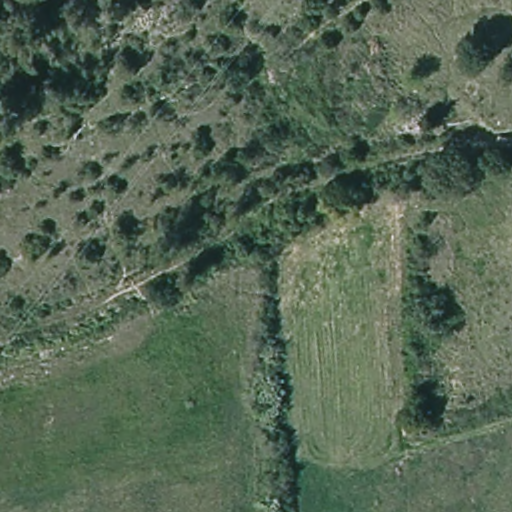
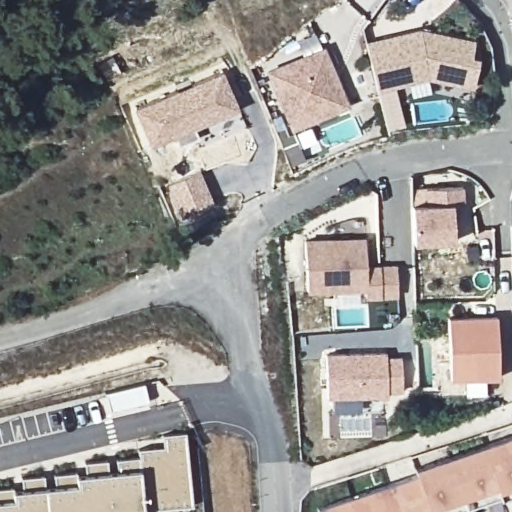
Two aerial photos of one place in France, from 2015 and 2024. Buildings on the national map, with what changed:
new [(385,129),(380,103),(378,92),(366,43),(421,29),(476,41),(472,58),(480,59),(473,90),(427,80),(394,88),(396,99),(403,127),(385,129)]
new [(325,46),(350,105),(291,131),(266,72),(325,46)]
new [(151,147),(135,111),(223,72),(240,109),(195,128),(199,138),(179,147),(175,137),(151,147)]
new [(282,147),(294,143),(301,158),(288,163),(282,147)]
new [(200,171),(214,203),(181,218),(167,186),(200,171)]
new [(428,208),(428,192),(465,191),(465,208),(454,208),(455,243),(414,244),(413,208),(428,208)]
new [(368,242),(368,270),(398,269),(399,298),(367,298),(367,290),(309,292),(307,243),(368,242)]
new [(498,317),(499,379),(451,380),(448,318),(498,317)]
new [(388,353),(388,358),(403,358),(403,391),(388,392),(389,397),(328,398),(326,355),(388,353)]
new [(12,488),(13,491),(22,490),(22,479),(44,476),(44,488),(54,487),(55,475),(76,473),(77,476),(86,475),(85,463),(107,461),(107,473),(116,472),(116,460),(139,458),(138,449),(164,446),(163,435),(185,433),(192,505),(145,511),(145,512),(0,512),(0,489),(12,488)]
new [(415,467),(512,436),(512,496),(501,499),(501,496),(453,512),(319,512),(317,506),(417,474),(415,467)]

